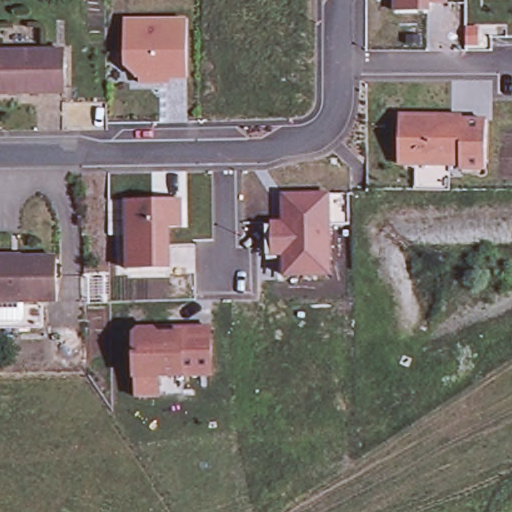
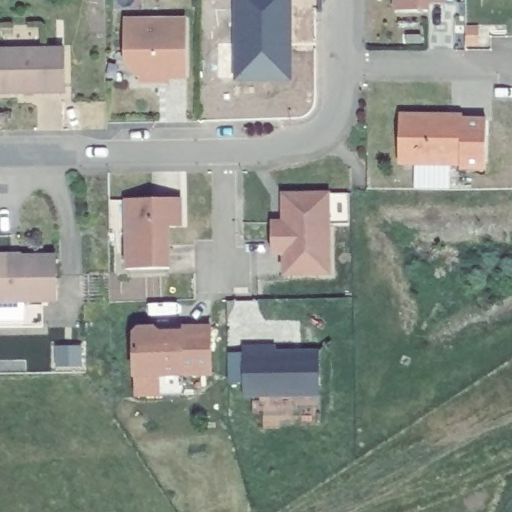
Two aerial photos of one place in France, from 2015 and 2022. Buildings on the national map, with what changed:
new [(235,80),(235,0),(291,0),(291,81),(235,80)]
unchanged [(397,7),(396,0),(426,0),(426,8),(397,7)]
unchanged [(180,18),(180,76),(153,76),(153,81),(133,81),(133,73),(128,73),(118,63),(118,18),(180,18)]
unchanged [(65,91),(0,91),(0,50),(65,50),(65,91)]
unchanged [(480,168),(455,167),(456,164),(445,164),(394,162),(394,114),(447,115),(458,115),(457,119),(481,119),(480,168)]
unchanged [(345,223),(324,223),(327,273),(282,273),(282,252),(270,253),(268,236),(267,222),(279,221),(279,193),(344,193),(345,223)]
unchanged [(128,264),(128,197),(183,196),(183,224),(168,224),(170,264),(128,264)]
unchanged [(22,250),(57,250),(57,275),(57,296),(50,296),(42,296),(43,319),(36,319),(0,319),(0,250),(22,250)]
unchanged [(128,394),(128,374),(127,332),(133,326),(148,326),(175,326),(205,326),(205,373),(177,373),(154,374),(154,393),(128,394)]
new [(243,354),(243,345),(276,345),(276,350),(319,350),(319,396),(243,396),(243,381),(228,381),(229,354),(243,354)]
new [(82,347),(82,366),(57,366),(56,347),(82,347)]

